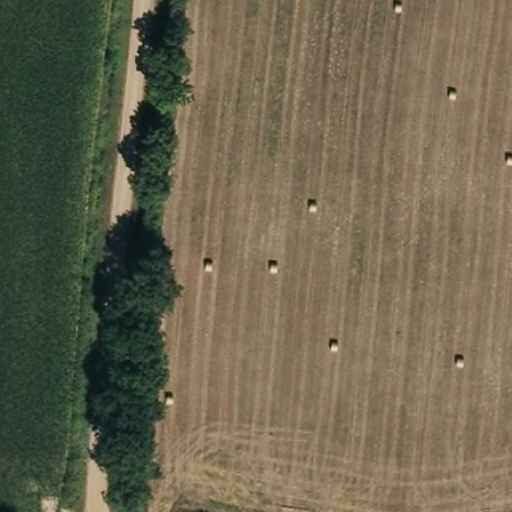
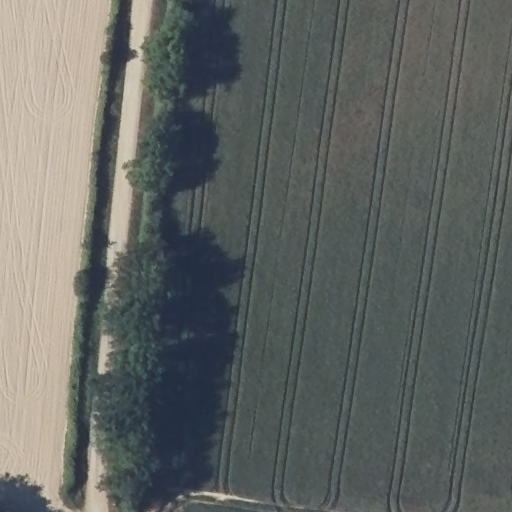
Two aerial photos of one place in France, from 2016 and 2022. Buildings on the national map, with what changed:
[]

